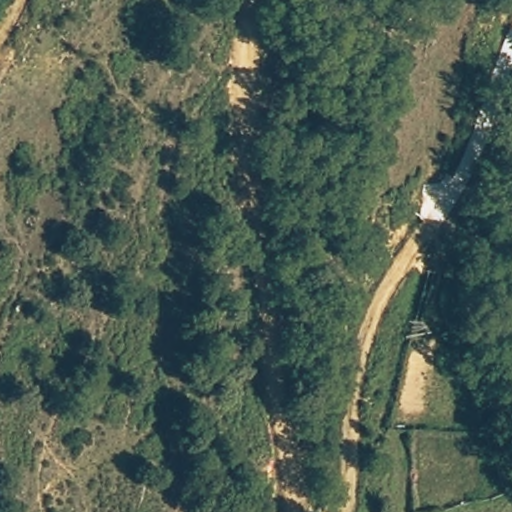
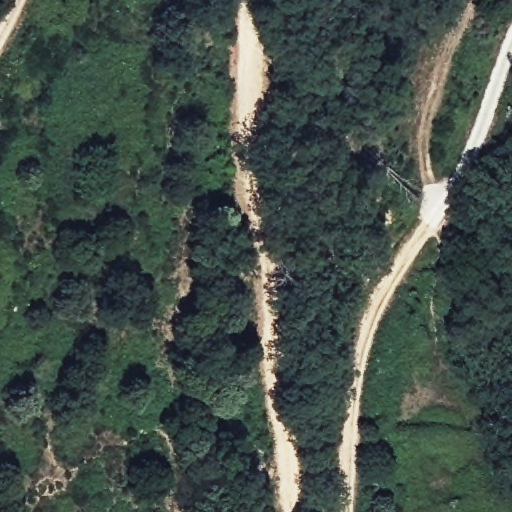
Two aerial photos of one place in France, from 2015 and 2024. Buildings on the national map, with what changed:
[]

